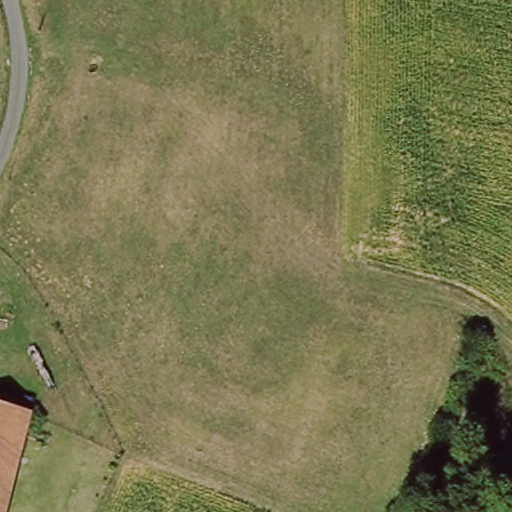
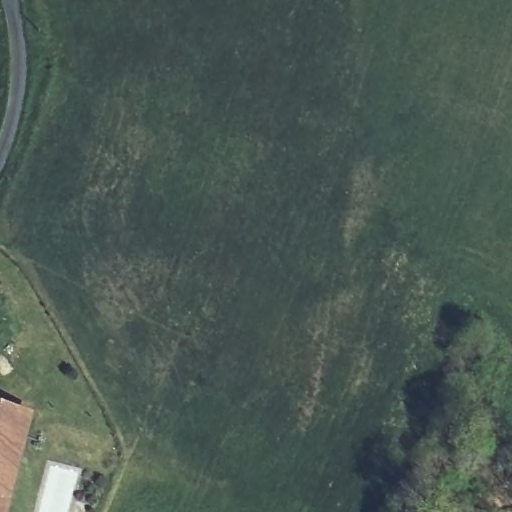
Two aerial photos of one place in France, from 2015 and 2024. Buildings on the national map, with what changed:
unchanged [(11,512),(0,512),(0,406),(38,414),(11,512)]

